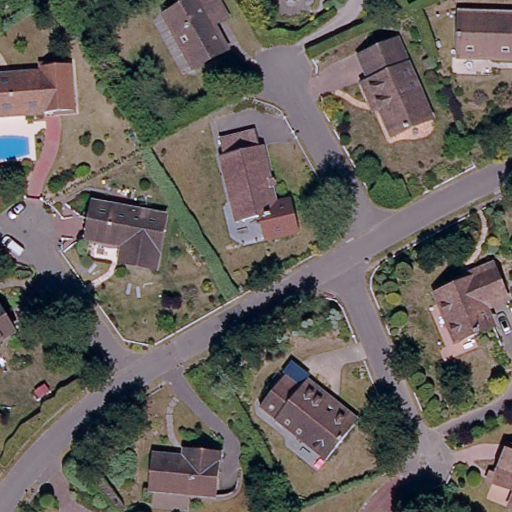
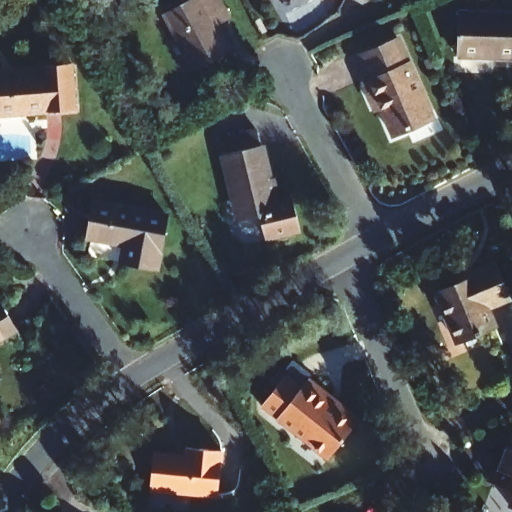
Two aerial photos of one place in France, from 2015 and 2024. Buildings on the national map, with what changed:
unchanged [(161,14),(188,0),(216,0),(224,17),(211,24),(223,50),(189,67),(161,14)]
unchanged [(512,57),(454,54),(457,10),(512,12),(512,57)]
unchanged [(435,105),(399,124),(387,98),(377,103),(369,84),(378,79),(361,46),(397,29),(435,105)]
unchanged [(26,71),(43,70),(43,64),(73,63),(75,109),(45,112),(30,112),(29,114),(0,115),(0,73),(26,71)]
unchanged [(249,131),(253,144),(256,143),(272,212),(233,220),(214,139),(249,131)]
unchanged [(91,195),(163,209),(153,262),(116,255),(119,242),(83,235),(91,195)]
unchanged [(482,305),(491,323),(454,340),(433,293),(467,277),(466,273),(488,263),(504,295),(482,305)]
unchanged [(15,324),(0,335),(0,304),(15,324)]
unchanged [(282,372),(298,383),(304,375),(325,390),(319,398),(351,423),(325,454),(258,404),(282,372)]
unchanged [(492,472),(503,445),(512,449),(512,511),(502,507),(509,490),(483,480),(487,470),(492,472)]
unchanged [(156,452),(187,455),(188,446),(223,450),(219,495),(153,488),(156,452)]

